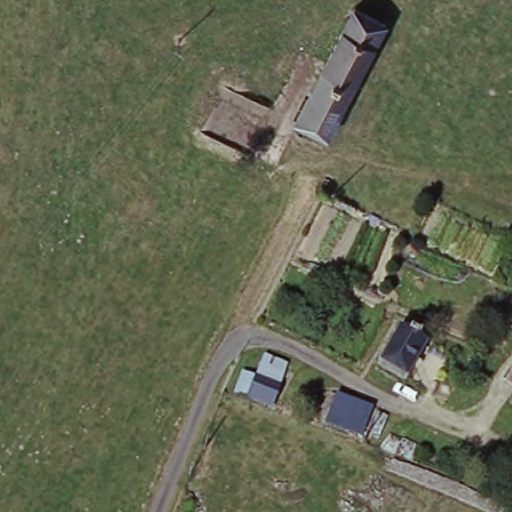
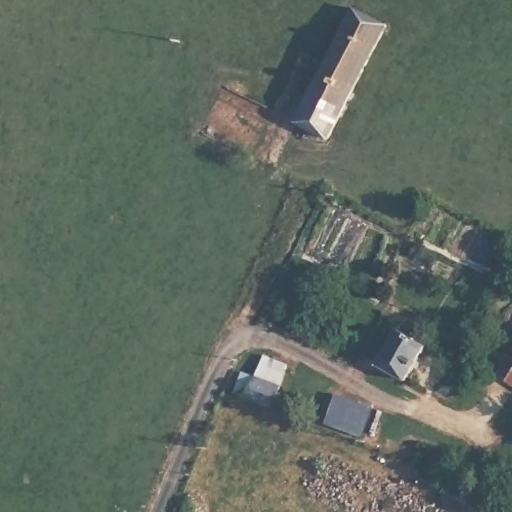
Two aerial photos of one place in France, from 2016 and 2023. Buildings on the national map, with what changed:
unchanged [(332,143),(296,127),(354,11),(388,28),(332,143)]
unchanged [(383,369),(404,334),(430,350),(410,385),(383,369)]
unchanged [(247,401),(235,396),(243,378),(253,382),(262,363),(288,373),(281,392),(273,411),(247,401)]
unchanged [(512,384),(512,392),(508,390),(512,384)]
unchanged [(363,440),(327,425),(337,398),(372,413),(363,440)]

